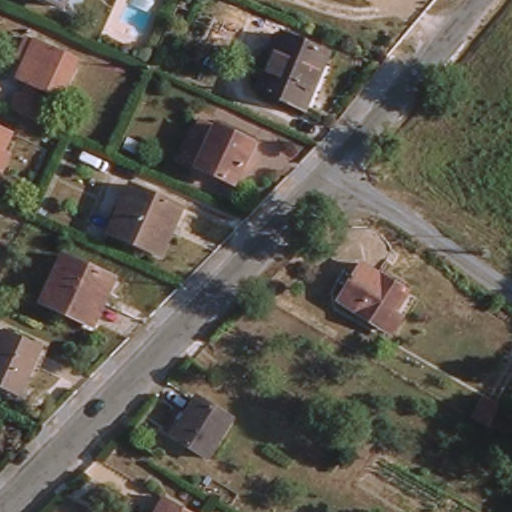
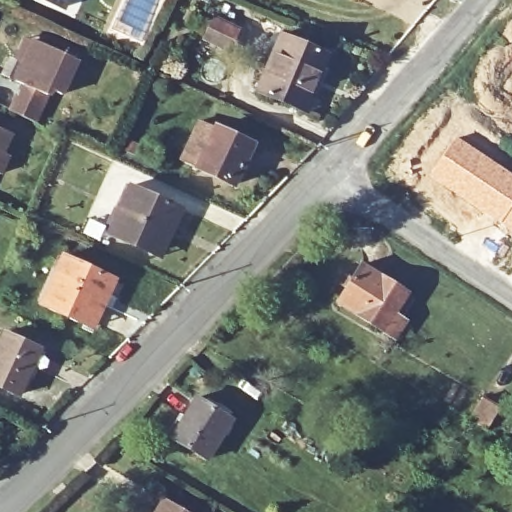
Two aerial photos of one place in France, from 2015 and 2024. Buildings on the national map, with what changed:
unchanged [(50,0),(71,0),(68,7),(50,0)]
unchanged [(261,88),(288,33),(329,53),(302,108),(261,88)]
unchanged [(17,86),(37,41),(83,60),(66,99),(54,94),(37,130),(11,119),(25,89),(17,86)]
unchanged [(188,166),(207,124),(245,143),(226,184),(188,166)]
unchanged [(12,135),(1,161),(8,166),(3,181),(0,181),(0,130),(12,135)]
new [(512,174),(512,232),(428,177),(455,136),(512,174)]
unchanged [(110,234),(133,184),(187,210),(164,260),(110,234)]
unchanged [(44,305),(65,259),(113,281),(93,326),(44,305)]
unchanged [(412,291),(388,327),(344,300),(365,266),(412,291)]
unchanged [(20,396),(0,387),(0,358),(11,336),(41,350),(20,396)]
unchanged [(231,418),(205,457),(172,436),(197,396),(231,418)]
new [(480,398),(497,408),(485,429),(468,419),(480,398)]
unchanged [(167,494),(198,512),(156,512),(167,494)]

